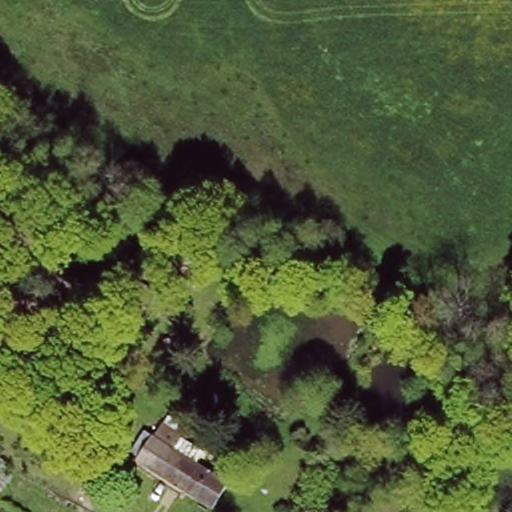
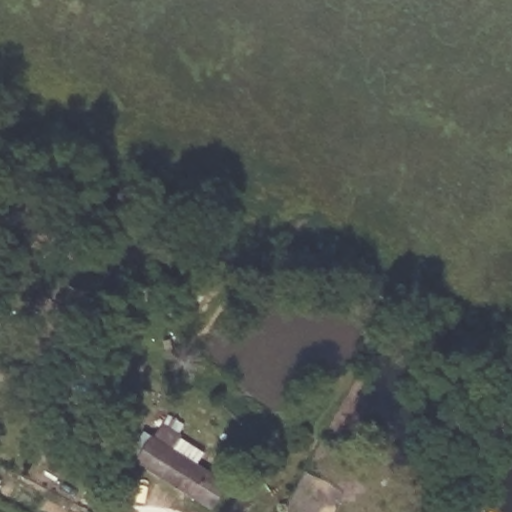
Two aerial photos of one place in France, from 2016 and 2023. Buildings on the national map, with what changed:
unchanged [(136,458),(155,426),(167,433),(163,441),(228,476),(215,501),(136,458)]

